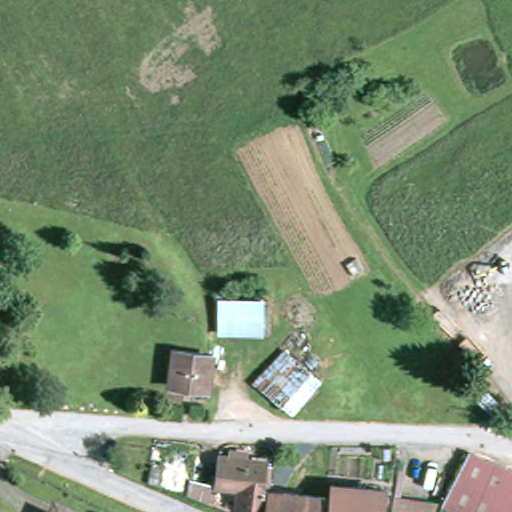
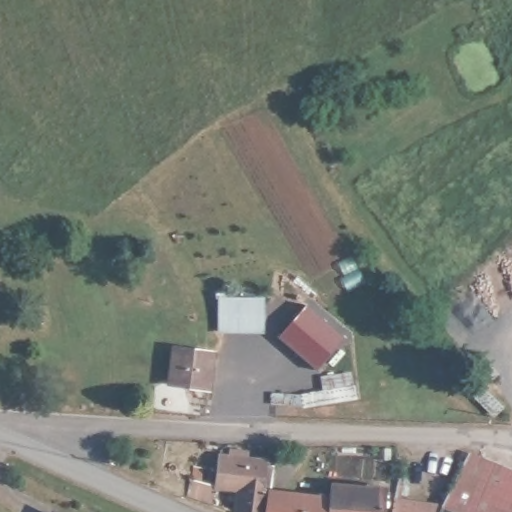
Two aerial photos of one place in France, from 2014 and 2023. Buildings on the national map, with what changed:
unchanged [(264,335),(213,335),(212,302),(263,299),(264,335)]
new [(307,305),(345,336),(317,369),(279,337),(307,305)]
unchanged [(166,390),(165,351),(209,353),(209,391),(166,390)]
unchanged [(512,480),(512,512),(449,512),(446,510),(469,460),(512,480)]
unchanged [(225,473),(231,475),(232,465),(242,466),(244,467),(245,471),(245,475),(245,478),(264,481),(257,507),(265,509),(264,512),(237,512),(239,505),(217,500),(225,473)]
unchanged [(187,492),(212,501),(207,512),(194,512),(180,506),(187,492)]
unchanged [(325,503),(324,512),(267,512),(269,495),(325,503)]
unchanged [(331,512),(333,498),(384,503),(384,505),(382,512),(331,512)]
unchanged [(423,512),(382,512),(384,505),(423,512)]

